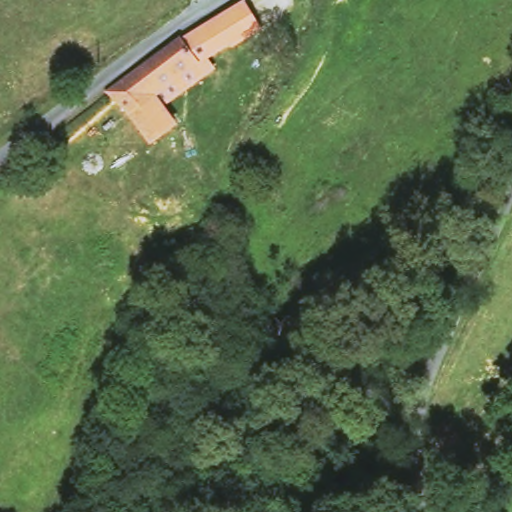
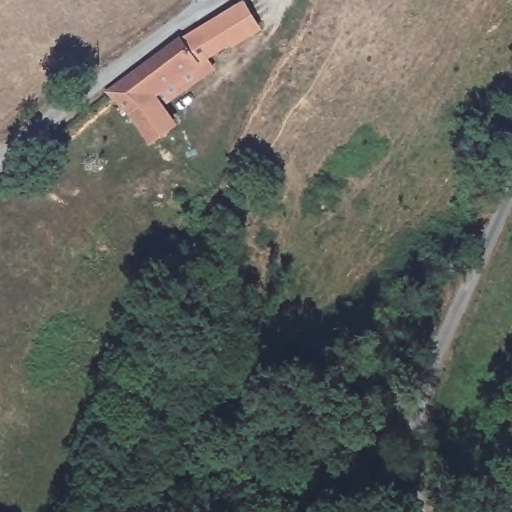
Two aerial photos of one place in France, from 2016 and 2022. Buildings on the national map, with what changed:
unchanged [(245,0),(263,31),(202,69),(196,60),(179,34),(239,0),(245,0)]
unchanged [(177,100),(167,91),(156,98),(137,109),(119,84),(179,34),(196,60),(202,69),(208,78),(177,100)]
unchanged [(179,129),(151,148),(126,116),(107,94),(119,84),(137,109),(156,98),(179,129)]

